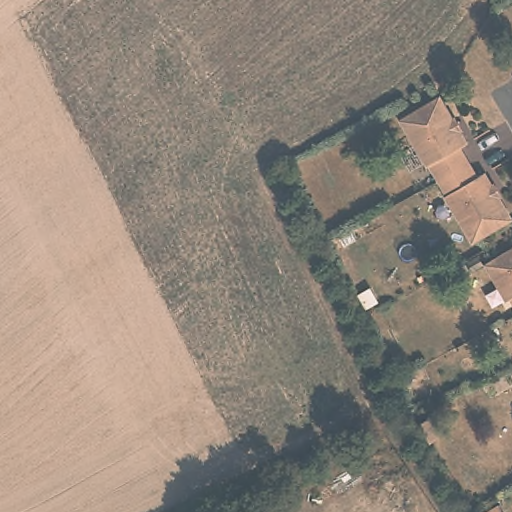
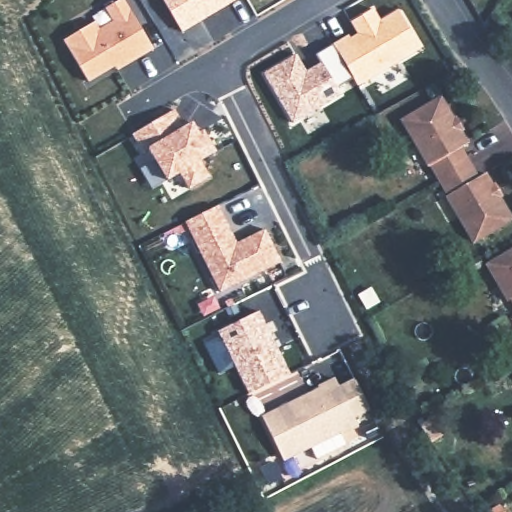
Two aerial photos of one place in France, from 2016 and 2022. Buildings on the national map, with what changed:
new [(118,70),(115,64),(88,80),(63,39),(95,19),(91,14),(119,0),(124,0),(153,48),(118,70)]
new [(181,29),(164,0),(233,0),(181,29)]
new [(359,85),(355,77),(335,89),(338,95),(293,121),(264,72),(296,54),(305,70),(321,61),(316,52),(348,34),(350,36),(356,33),(350,22),(374,8),(379,19),(396,9),(419,48),(359,85)]
unchanged [(446,200),(448,199),(431,170),(429,171),(402,125),(441,102),(468,148),(460,152),(469,167),(477,181),(485,177),(512,223),(473,246),(446,200)]
new [(185,123),(192,120),(199,133),(205,128),(215,149),(209,153),(202,158),(209,175),(188,188),(180,172),(166,180),(149,152),(142,154),(132,133),(175,109),(185,123)]
new [(218,206),(236,241),(264,228),(279,261),(220,291),(184,221),(218,206)]
unchanged [(511,298),(508,300),(487,264),(512,249),(512,300),(511,298)]
new [(249,393),(218,329),(260,310),(290,373),(249,393)]
new [(317,388),(315,385),(333,378),(337,385),(354,378),(369,410),(353,418),(356,425),(339,434),(344,444),(317,458),(312,447),(283,461),(260,414),(317,388)]
unchanged [(432,415),(444,433),(430,442),(426,436),(418,424),(432,415)]

